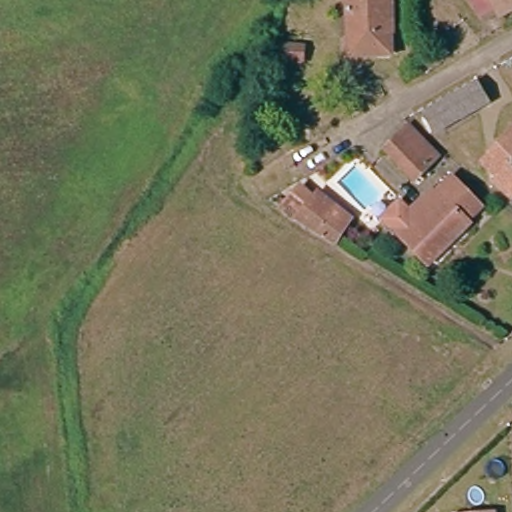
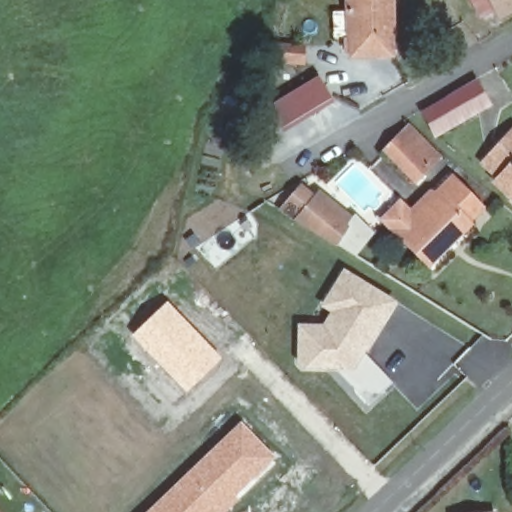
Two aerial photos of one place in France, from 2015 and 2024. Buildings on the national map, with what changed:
unchanged [(349,0),(395,0),(394,38),(392,38),(392,58),(350,59),(350,39),(348,39),(349,0)]
unchanged [(496,24),(492,16),(479,23),(467,0),(512,0),(512,16),(496,24)]
unchanged [(306,48),(304,67),(289,66),(287,76),(276,76),(280,45),(306,48)]
new [(336,100),(285,131),(271,104),(319,75),(336,100)]
unchanged [(490,108),(436,139),(424,117),(479,86),(490,108)]
unchanged [(383,152),(412,127),(440,160),(416,185),(383,152)]
unchanged [(509,207),(493,192),(497,188),(481,173),(512,139),(512,204),(509,207)]
demolished [(361,207),(350,217),(319,183),(331,173),(361,207)]
unchanged [(483,208),(469,222),(475,229),(433,269),(400,235),(386,221),(403,204),(417,218),(456,180),(483,208)]
unchanged [(302,196),(314,205),(319,198),(353,225),(337,250),(284,216),(302,196)]
new [(395,299),(366,352),(392,382),(371,403),(340,368),(302,368),(298,363),(300,323),(323,323),(331,311),(321,305),(344,267),(395,299)]
new [(168,300),(223,358),(186,393),(131,335),(168,300)]
new [(277,459),(227,512),(145,512),(241,420),(277,459)]
unchanged [(467,512),(497,508),(497,512),(467,512)]

